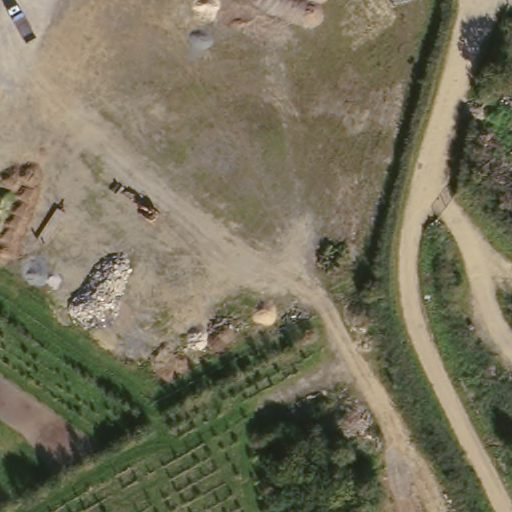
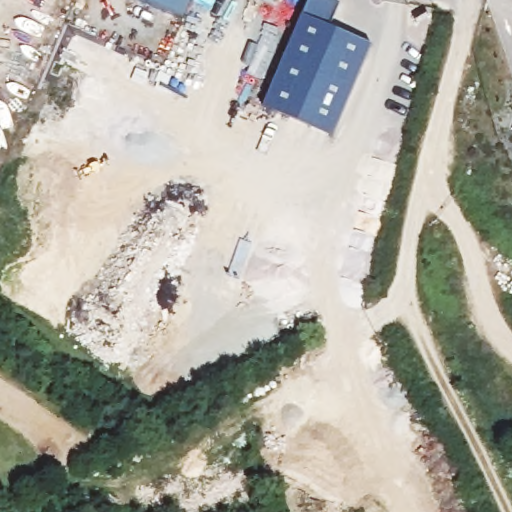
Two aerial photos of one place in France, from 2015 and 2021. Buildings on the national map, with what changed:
new [(183,22),(132,0),(192,0),(183,22)]
new [(339,4),(330,27),(373,46),(334,137),(264,107),(309,0),(327,0),(339,4)]

